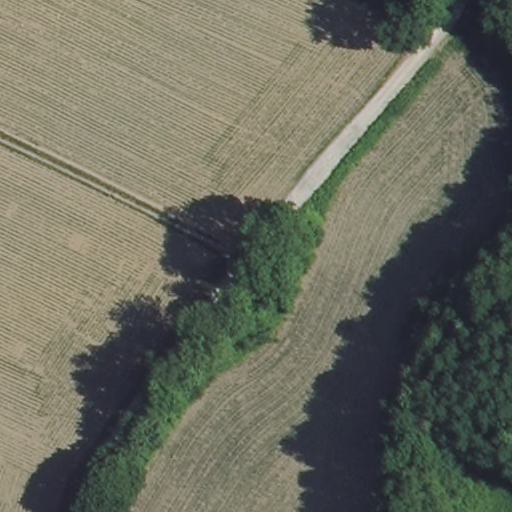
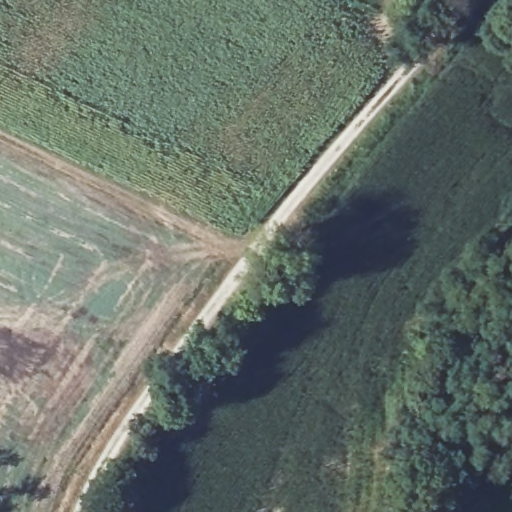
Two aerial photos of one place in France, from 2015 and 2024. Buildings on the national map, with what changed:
unchanged [(276,307),(258,332),(240,320),(257,295),(276,307)]

